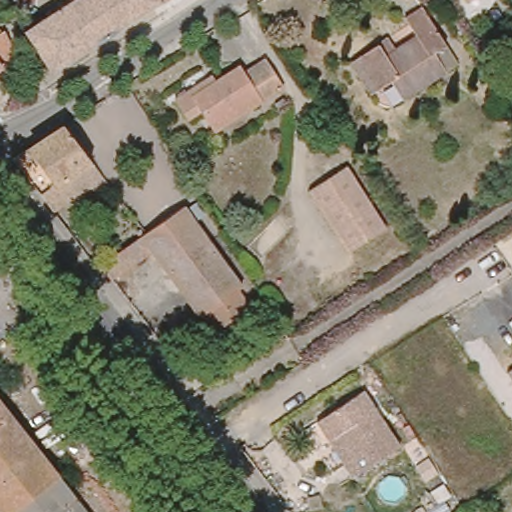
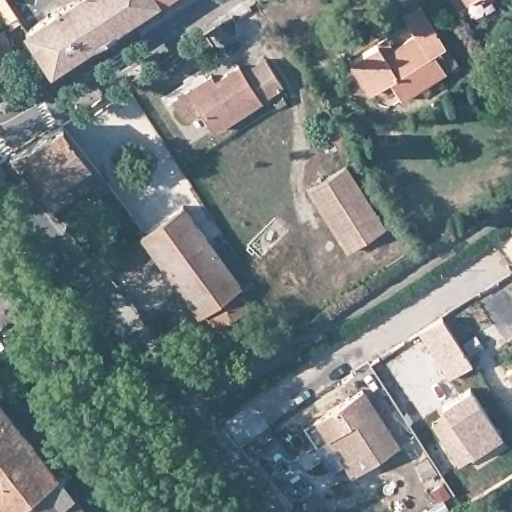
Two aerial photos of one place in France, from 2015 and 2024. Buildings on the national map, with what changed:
unchanged [(157,0),(161,6),(88,53),(61,15),(69,10),(84,0),(157,0)]
unchanged [(62,0),(84,0),(69,10),(62,0)]
unchanged [(171,0),(161,6),(157,0),(171,0)]
unchanged [(455,0),(475,0),(461,9),(455,0)]
unchanged [(0,19),(0,10),(5,16),(0,19)]
unchanged [(441,71),(396,101),(385,85),(367,96),(346,65),(372,50),(378,59),(410,39),(399,21),(416,10),(439,47),(451,65),(441,71)]
unchanged [(61,15),(88,53),(55,74),(47,64),(28,36),(61,15)]
unchanged [(9,64),(0,69),(0,44),(9,64)]
unchanged [(212,131),(198,109),(186,116),(173,97),(208,74),(212,80),(235,65),(240,72),(260,60),(278,87),(212,131)]
unchanged [(81,168),(33,200),(1,157),(49,126),(81,168)]
unchanged [(81,168),(94,185),(46,218),(33,200),(81,168)]
unchanged [(379,229),(342,254),(302,193),(339,169),(379,229)]
unchanged [(210,331),(198,316),(195,320),(148,258),(108,286),(95,270),(140,237),(177,211),(180,215),(189,209),(201,225),(192,231),(235,288),(229,292),(241,307),(210,331)]
new [(472,364),(449,380),(420,332),(443,318),(472,364)]
unchanged [(512,369),(512,383),(506,373),(512,369)]
unchanged [(175,382),(184,376),(191,386),(183,392),(175,382)]
unchanged [(318,420),(365,388),(402,444),(355,475),(346,461),(333,442),(318,420)]
new [(502,437),(458,466),(431,425),(447,415),(442,407),(470,388),(502,437)]
unchanged [(37,463),(76,512),(0,512),(0,416),(37,463)]

